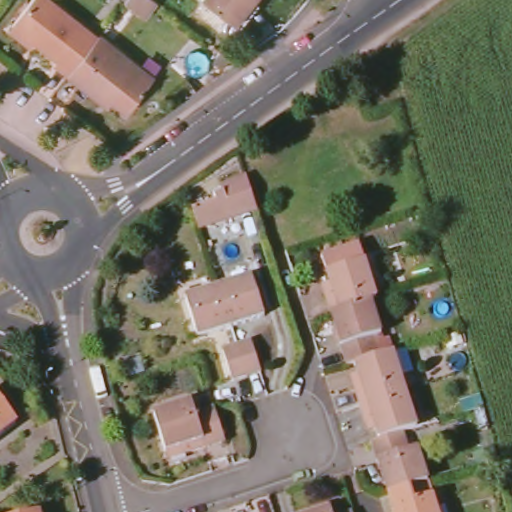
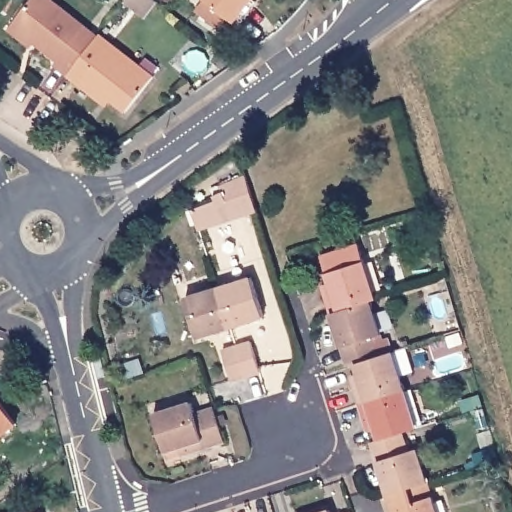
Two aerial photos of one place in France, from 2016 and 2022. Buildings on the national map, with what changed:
unchanged [(12,32),(16,27),(37,0),(39,0),(93,42),(70,72),(58,63),(55,66),(17,36),(12,32)]
unchanged [(126,0),(153,0),(156,2),(143,18),(123,3),(126,0)]
unchanged [(207,0),(255,0),(236,24),(207,0)]
unchanged [(66,76),(70,72),(93,42),(98,36),(153,80),(126,112),(113,102),(108,110),(104,107),(96,100),(81,88),(66,76)]
unchanged [(189,200),(246,182),(256,212),(199,230),(189,200)]
unchanged [(416,214),(425,211),(428,222),(419,224),(416,214)]
unchanged [(369,301),(330,315),(324,293),(331,291),(320,256),(358,245),(376,299),(369,301)]
unchanged [(218,289),(250,279),(263,317),(230,327),(218,289)]
unchanged [(230,327),(196,338),(184,299),(218,289),(230,327)]
unchanged [(330,315),(369,301),(381,335),(371,338),(378,356),(354,364),(346,366),(341,347),(331,349),(326,333),(335,330),(330,315)]
unchanged [(221,352),(236,346),(249,343),(259,372),(246,376),(231,381),(221,352)]
unchanged [(378,356),(392,352),(404,390),(358,405),(351,384),(359,381),(354,364),(378,356)]
unchanged [(404,390),(416,428),(403,433),(378,440),(373,424),(364,426),(358,405),(404,390)]
unchanged [(216,412),(224,441),(181,455),(178,447),(164,452),(154,417),(191,404),(196,414),(213,408),(216,412)]
unchanged [(0,435),(0,406),(14,425),(0,435)]
unchanged [(403,433),(409,451),(416,449),(427,483),(388,496),(371,443),(378,440),(403,433)]
unchanged [(435,512),(393,512),(388,496),(427,483),(435,512)]

